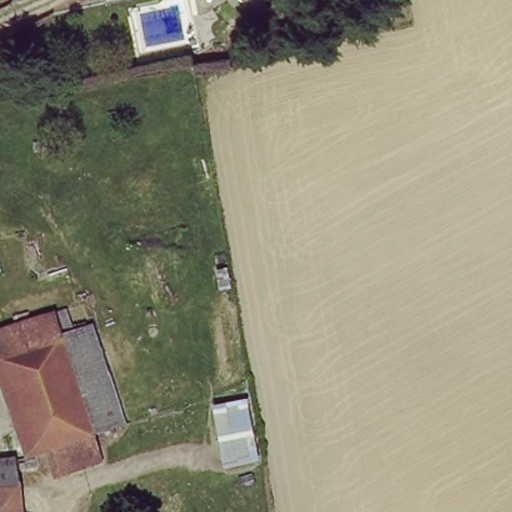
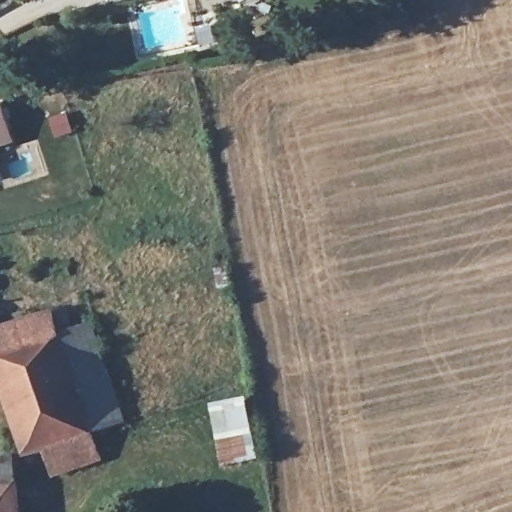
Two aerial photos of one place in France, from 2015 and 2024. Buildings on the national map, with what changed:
unchanged [(7,5),(5,0),(24,0),(7,5)]
unchanged [(219,14),(202,0),(242,0),(219,14)]
new [(1,100),(12,139),(0,142),(0,100),(1,100)]
unchanged [(55,318),(64,345),(95,436),(50,448),(33,453),(0,348),(0,334),(55,318)]
unchanged [(123,427),(95,436),(64,345),(93,335),(123,427)]
unchanged [(211,407),(245,403),(252,464),(228,470),(211,407)]
unchanged [(59,475),(50,448),(95,436),(95,437),(104,465),(59,475)]
unchanged [(11,461),(18,512),(0,512),(0,463),(11,461)]

